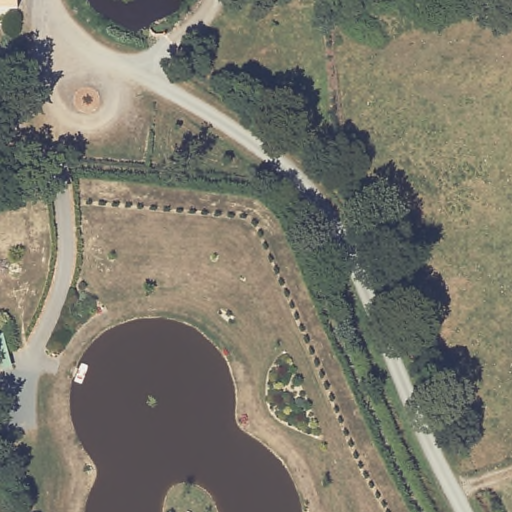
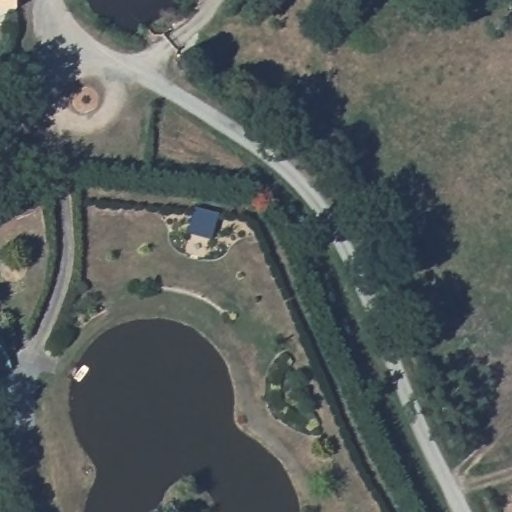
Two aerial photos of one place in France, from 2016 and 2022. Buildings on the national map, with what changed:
unchanged [(15,6),(0,6),(0,0),(15,0),(15,1),(15,6)]

